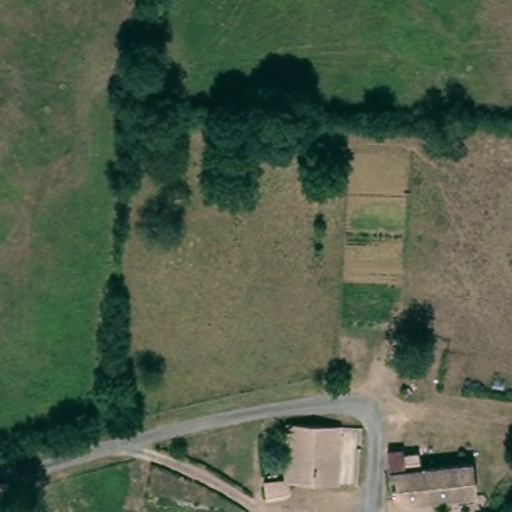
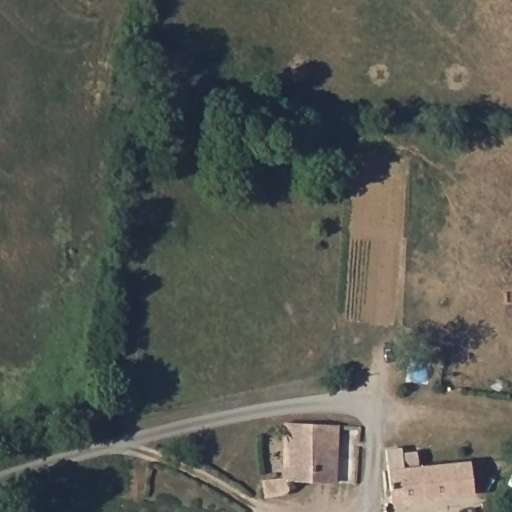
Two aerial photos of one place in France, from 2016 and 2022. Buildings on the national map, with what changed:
unchanged [(316,424),(314,470),(313,482),(292,481),(291,505),(277,505),(277,512),(264,512),(265,476),(283,477),(288,422),(316,424)]
unchanged [(365,427),(360,485),(313,482),(314,470),(316,424),(365,427)]
unchanged [(405,449),(405,459),(420,458),(421,465),(473,462),(476,495),(388,502),(388,495),(391,495),(390,450),(405,449)]

